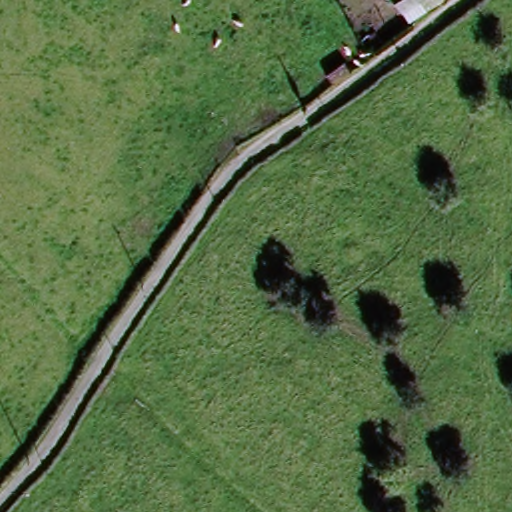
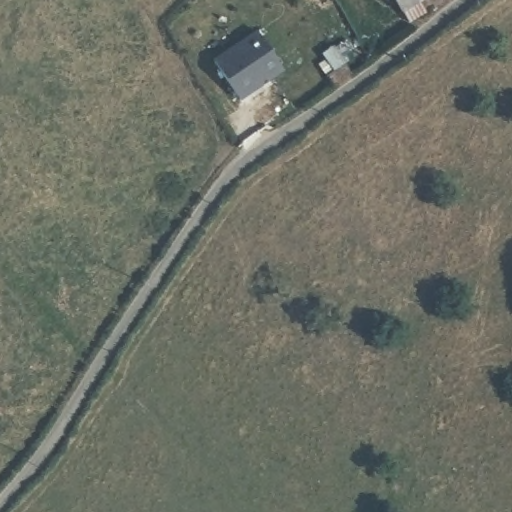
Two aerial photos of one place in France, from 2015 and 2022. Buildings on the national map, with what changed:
unchanged [(428,9),(412,19),(400,0),(441,0),(442,0),(428,9)]
new [(257,32),(283,71),(241,102),(214,63),(257,32)]
unchanged [(357,78),(339,90),(331,77),(348,65),(357,78)]

